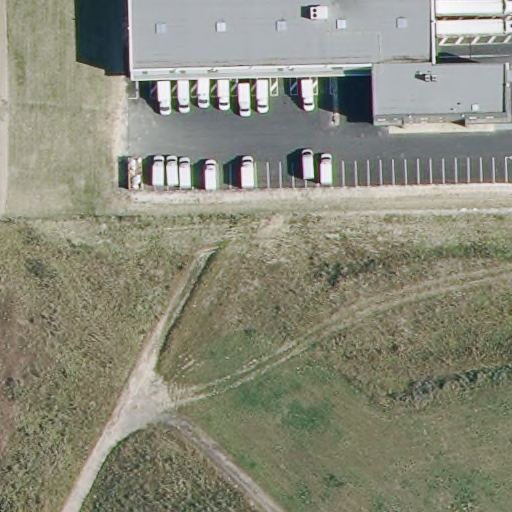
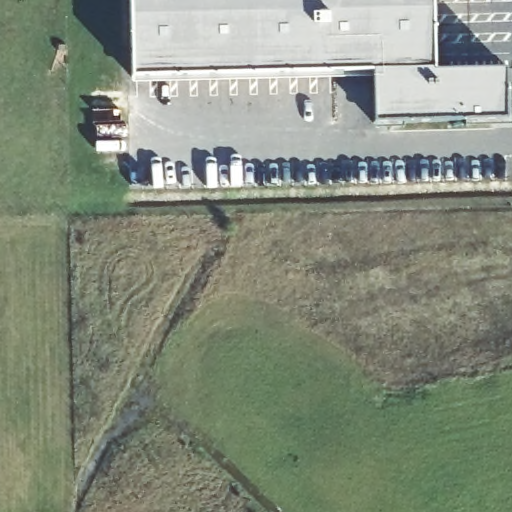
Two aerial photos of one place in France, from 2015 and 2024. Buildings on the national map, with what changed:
unchanged [(505,69),(506,87),(511,86),(512,112),(512,125),(466,127),(465,120),(402,123),(402,129),(375,130),(373,80),(132,87),(129,0),(434,0),(436,71),(505,69)]

